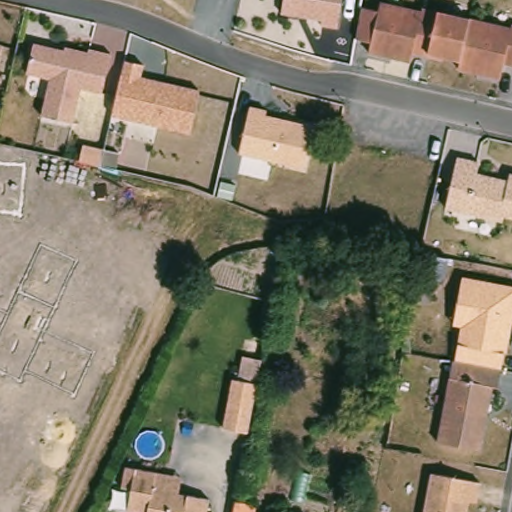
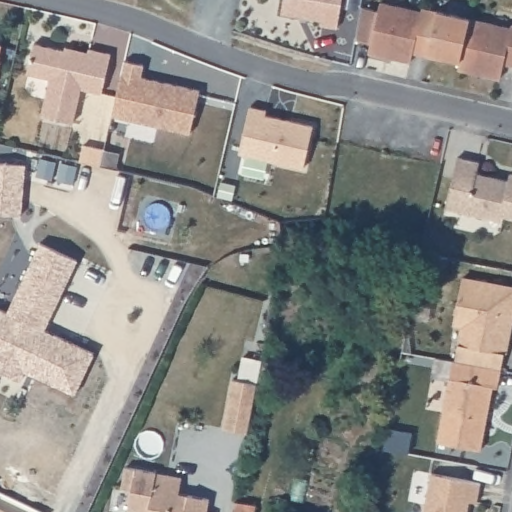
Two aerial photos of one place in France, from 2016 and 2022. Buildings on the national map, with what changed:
unchanged [(287,0),(343,0),(337,29),(324,27),(324,23),(284,15),(287,0)]
unchanged [(507,60),(503,74),(461,65),(463,56),(432,49),(431,51),(416,48),(414,58),(372,48),(374,38),(359,35),(362,20),(365,3),(382,6),(383,0),(390,0),(424,8),(425,4),(512,24),(512,61),(507,60)]
unchanged [(0,63),(0,42),(4,43),(0,63)]
unchanged [(62,51),(63,48),(87,53),(88,49),(112,54),(102,96),(82,91),(73,124),(43,116),(52,80),(30,74),(35,45),(62,51)]
unchanged [(144,79),(201,91),(191,135),(115,116),(126,61),(147,65),(144,79)]
unchanged [(268,116),(315,128),(305,168),(242,155),(253,107),(269,111),(268,116)]
unchanged [(509,212),(508,217),(452,204),(463,153),(485,158),(482,169),(512,176),(512,213),(509,212)]
new [(20,214),(0,212),(0,162),(25,164),(20,214)]
new [(75,397),(25,373),(20,383),(0,373),(0,310),(8,314),(41,244),(78,262),(49,322),(45,332),(94,355),(75,397)]
unchanged [(459,343),(460,329),(454,328),(463,278),(512,286),(512,336),(508,354),(506,367),(458,357),(459,343)]
unchanged [(503,384),(498,384),(486,447),(442,439),(458,357),(506,367),(503,384)]
new [(233,380),(258,384),(248,433),(224,429),(233,380)]
unchanged [(219,511),(219,512),(153,512),(153,511),(133,507),(137,486),(127,484),(131,464),(161,469),(191,475),(188,491),(214,496),(211,510),(219,511)]
unchanged [(480,500),(473,499),(470,512),(428,512),(436,470),(484,479),(480,500)]
unchanged [(231,504),(252,508),(252,512),(230,512),(231,504)]
new [(0,508),(8,512),(0,512),(0,508)]

